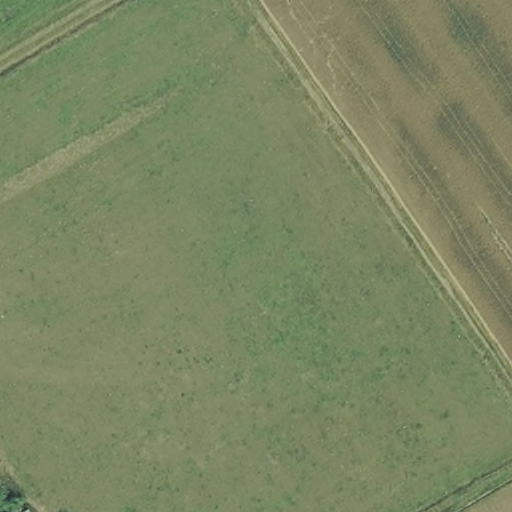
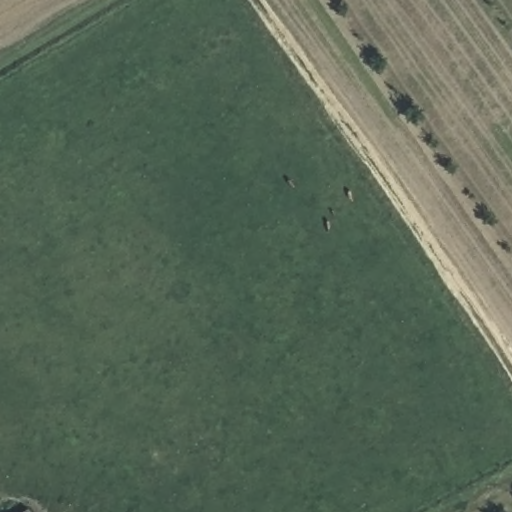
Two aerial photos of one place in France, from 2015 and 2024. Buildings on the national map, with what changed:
unchanged [(32,508),(35,512),(26,512),(32,508)]

